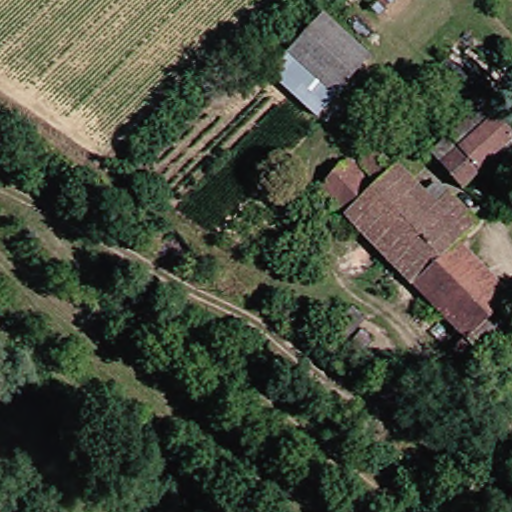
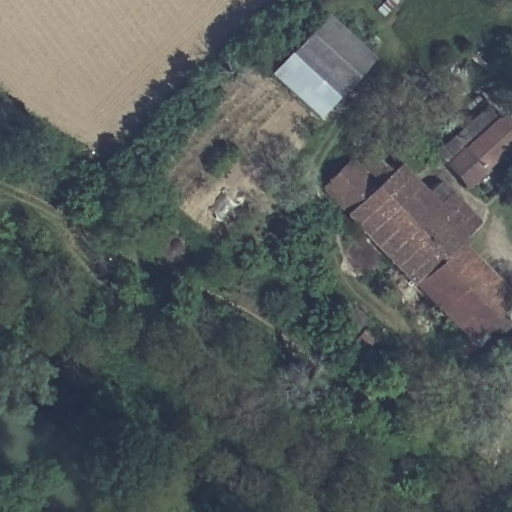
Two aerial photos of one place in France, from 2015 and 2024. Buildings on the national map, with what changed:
unchanged [(320,108),(275,68),(306,28),(352,69),(320,108)]
unchanged [(481,104),(509,133),(481,161),(486,166),(463,188),(430,153),(481,104)]
unchanged [(365,191),(372,185),(361,174),(352,163),(372,144),(382,155),(374,161),(384,172),(392,166),(431,209),(447,194),(476,225),(455,245),(407,291),(338,216),(365,191)]
unchanged [(315,191),(341,165),(365,191),(338,216),(315,191)]
unchanged [(508,304),(460,349),(407,291),(455,245),(508,304)]

